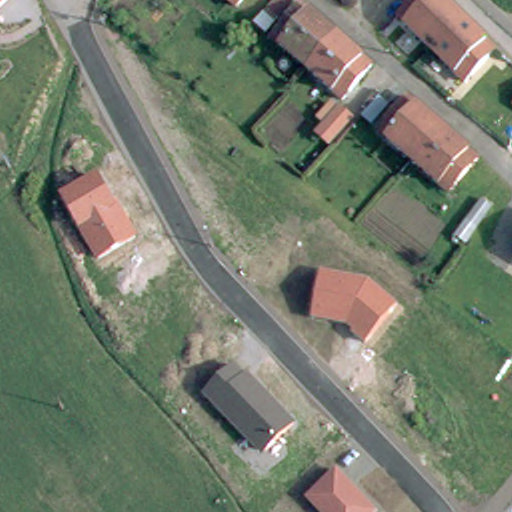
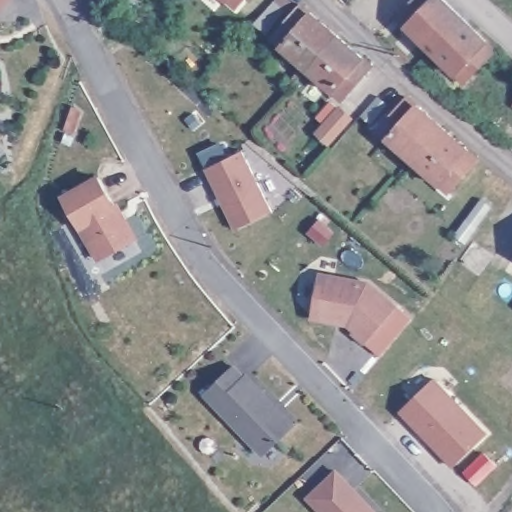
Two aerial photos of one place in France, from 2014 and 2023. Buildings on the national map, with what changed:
unchanged [(12,0),(0,11),(0,0),(12,0)]
unchanged [(237,0),(232,6),(226,0),(237,0)]
unchanged [(290,0),(292,3),(263,33),(251,23),(272,0),(290,0)]
unchanged [(391,11),(402,0),(444,0),(455,10),(424,43),(391,11)]
unchanged [(335,35),(305,69),(267,36),(297,3),(335,35)]
unchanged [(455,10),(488,41),(457,75),(424,43),(455,10)]
unchanged [(305,69),(335,35),(370,64),(339,98),(305,69)]
unchanged [(377,126),(408,93),(440,120),(410,154),(377,126)]
unchanged [(316,132),(336,111),(346,121),(328,141),(316,132)]
unchanged [(446,185),(410,154),(440,120),(476,151),(446,185)]
new [(235,230),(205,170),(243,151),(274,211),(235,230)]
unchanged [(136,239),(96,261),(59,194),(100,172),(136,239)]
unchanged [(482,199),(493,207),(482,223),(466,245),(455,237),(471,214),(482,199)]
new [(483,278),(472,270),(463,263),(478,243),(487,250),(498,259),(483,278)]
unchanged [(512,244),(512,247),(511,246),(512,244)]
unchanged [(370,280),(398,304),(366,342),(348,325),(310,321),(318,271),(370,280)]
unchanged [(296,424),(263,458),(201,397),(234,365),(296,424)]
new [(489,434),(454,468),(398,412),(435,376),(489,434)]
new [(495,470),(478,484),(466,473),(482,456),(495,470)]
unchanged [(378,512),(318,512),(302,496),(335,466),(378,512)]

